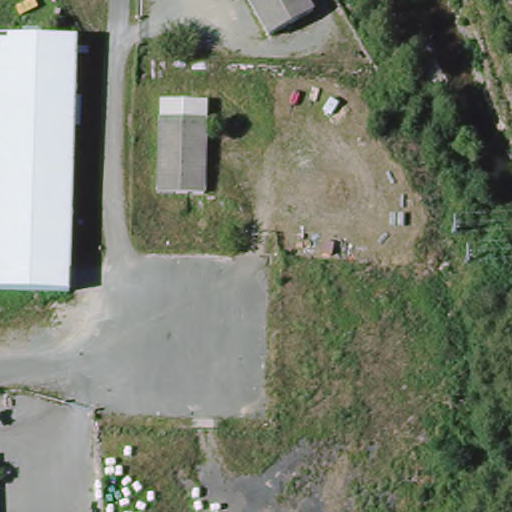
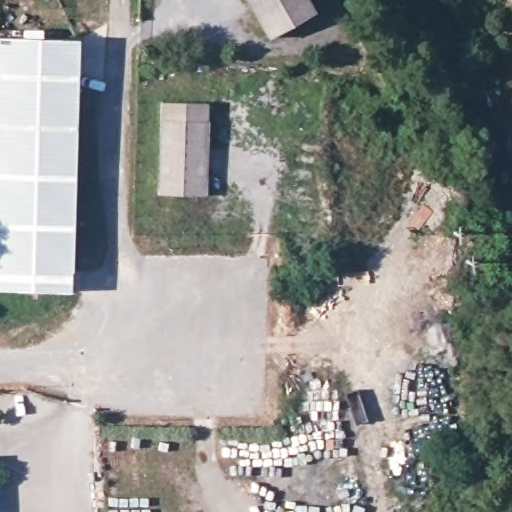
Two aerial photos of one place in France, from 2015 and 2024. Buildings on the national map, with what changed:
unchanged [(275,41),(251,0),(310,0),(318,15),(275,41)]
unchanged [(77,300),(0,294),(0,40),(82,42),(78,266),(77,300)]
unchanged [(206,106),(209,198),(163,197),(163,108),(206,106)]

